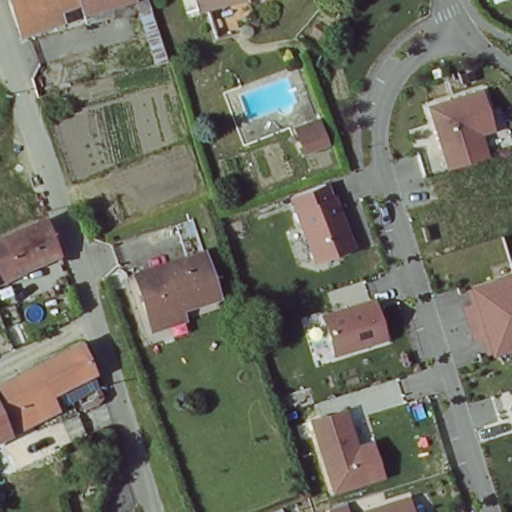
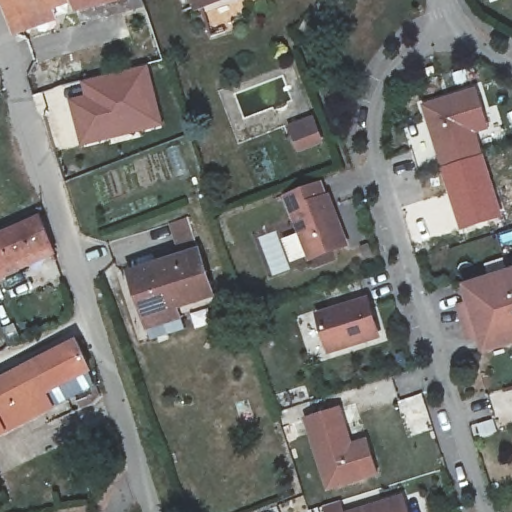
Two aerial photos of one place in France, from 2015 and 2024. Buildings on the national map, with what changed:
unchanged [(21,18),(24,29),(12,33),(1,0),(63,0),(65,4),(21,18)]
unchanged [(78,21),(72,0),(126,0),(128,6),(78,21)]
unchanged [(198,0),(212,0),(200,5),(198,0)]
new [(84,94),(81,80),(149,64),(165,125),(80,147),(68,99),(84,94)]
unchanged [(475,85),(486,131),(475,133),(479,153),(436,165),(420,98),(475,85)]
unchanged [(312,114),(321,136),(299,144),(290,123),(312,114)]
unchanged [(323,180),(350,246),(306,261),(282,196),(323,180)]
unchanged [(42,214),(53,247),(0,272),(0,234),(42,214)]
unchanged [(149,326),(146,316),(133,270),(200,251),(213,297),(188,304),(190,314),(149,326)]
unchanged [(477,341),(466,344),(454,306),(465,301),(461,287),(512,270),(512,347),(482,357),(477,341)]
unchanged [(363,296),(376,333),(323,349),(312,310),(363,296)]
unchanged [(88,366),(43,388),(47,401),(0,423),(0,377),(81,341),(88,366)]
unchanged [(337,405),(349,445),(365,439),(375,475),(321,491),(299,416),(337,405)]
unchanged [(337,497),(342,510),(402,494),(407,512),(324,512),(321,500),(337,497)]

